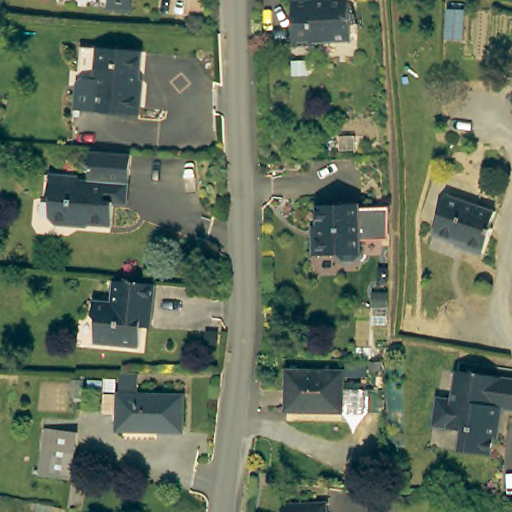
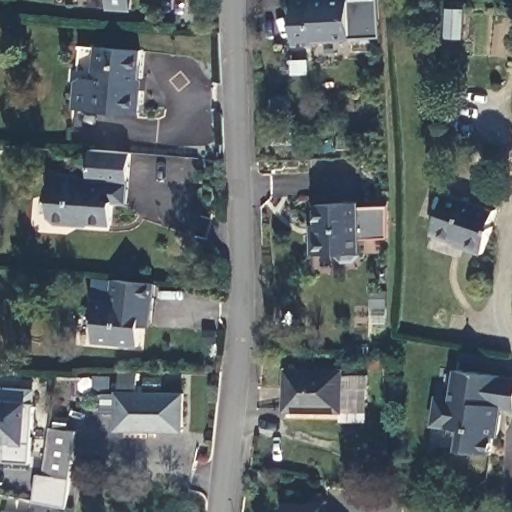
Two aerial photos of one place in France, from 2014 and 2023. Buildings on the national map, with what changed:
unchanged [(134,15),(110,12),(110,1),(96,0),(135,0),(134,15)]
unchanged [(350,4),(352,42),(320,45),(316,49),(297,48),(295,5),(350,4)]
unchanged [(87,86),(89,51),(151,56),(147,96),(151,96),(149,119),(84,114),(87,86)]
unchanged [(137,157),(132,208),(119,207),(117,230),(94,229),(90,224),(78,223),(74,227),(67,229),(60,226),(55,220),(56,204),(53,204),(55,178),(86,180),(87,183),(95,184),(98,154),(137,157)]
unchanged [(497,215),(491,231),(494,233),(484,256),(466,250),(467,247),(436,236),(448,198),(497,215)]
unchanged [(360,256),(354,262),(343,263),(337,257),(337,255),(312,256),(311,237),(316,237),(315,207),(357,205),(358,209),(381,208),(388,207),(388,240),(381,240),(359,241),(360,256)]
unchanged [(146,332),(145,351),(101,347),(102,323),(98,319),(99,306),(118,307),(119,284),(161,288),(158,322),(157,332),(146,332)]
unchanged [(512,407),(495,405),(494,412),(498,412),(496,436),(492,436),(490,452),(459,449),(460,428),(431,425),(434,396),(449,397),(452,368),(512,376),(512,407)]
unchanged [(344,376),(341,413),(287,411),(288,375),(344,376)]
unchanged [(105,399),(122,399),(122,378),(140,378),(140,397),(186,396),(187,431),(122,432),(122,419),(105,419),(105,399)]
new [(30,463),(3,462),(5,452),(0,452),(0,387),(35,390),(30,463)]
unchanged [(42,480),(46,435),(75,437),(72,468),(71,483),(42,480)]
unchanged [(329,512),(285,512),(285,506),(328,507),(329,512)]

